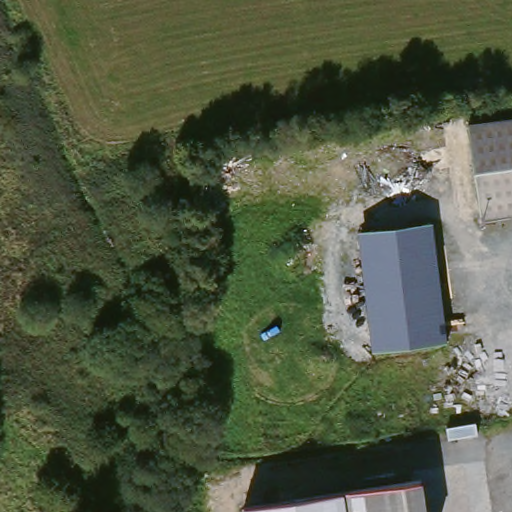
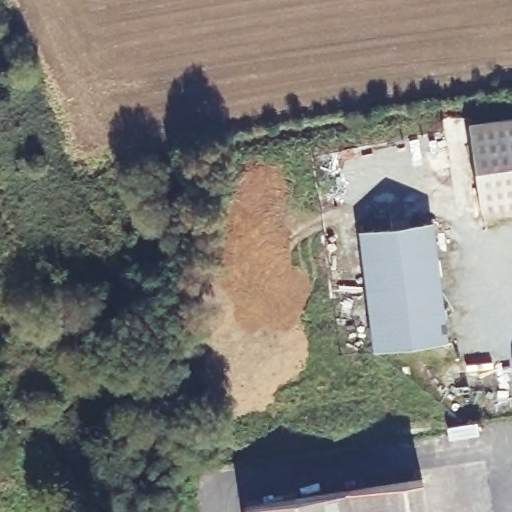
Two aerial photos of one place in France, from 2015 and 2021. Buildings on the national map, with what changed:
unchanged [(460,131),(512,123),(512,216),(470,222),(460,131)]
unchanged [(453,338),(379,348),(365,228),(438,218),(453,338)]
unchanged [(437,512),(355,512),(352,490),(431,477),(437,512)]
unchanged [(355,512),(247,512),(247,506),(352,490),(355,512)]

